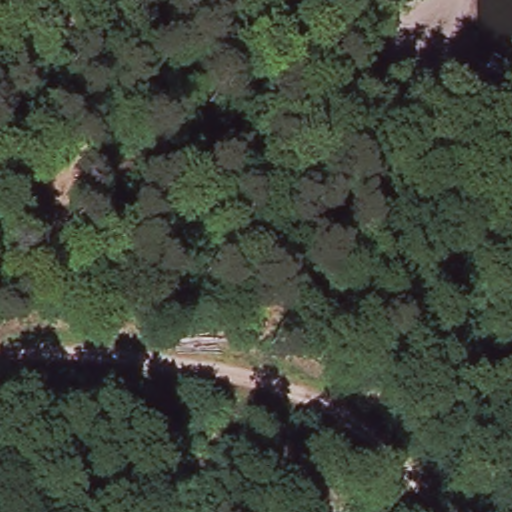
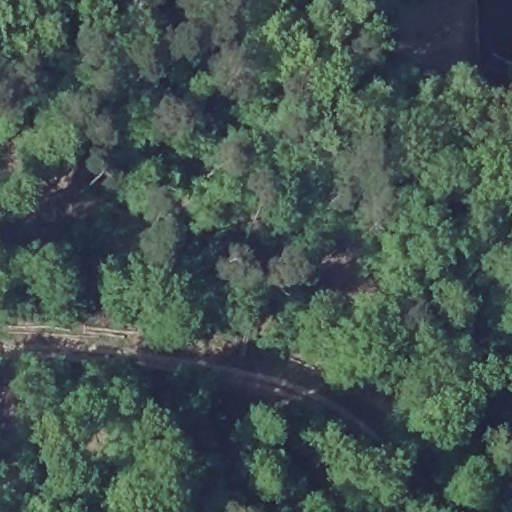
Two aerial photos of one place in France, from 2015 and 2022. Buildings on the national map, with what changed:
unchanged [(459,0),(467,4),(457,27),(445,22),(455,0),(459,0)]

